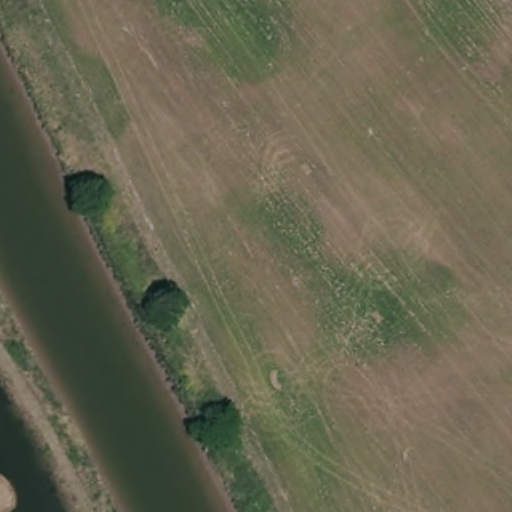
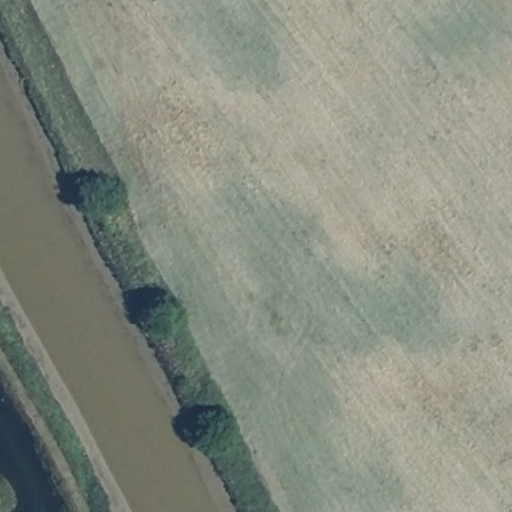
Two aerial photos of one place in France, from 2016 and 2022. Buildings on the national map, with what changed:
[]

